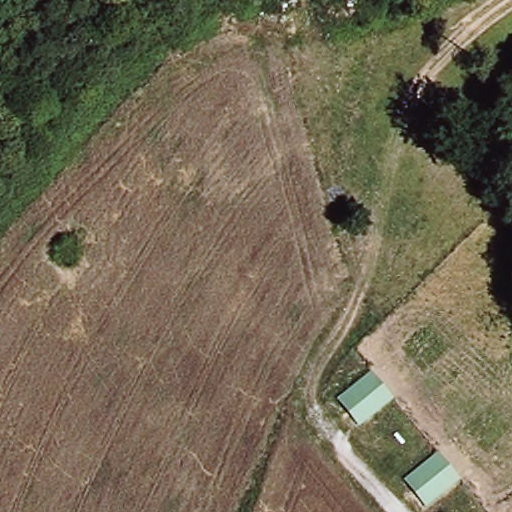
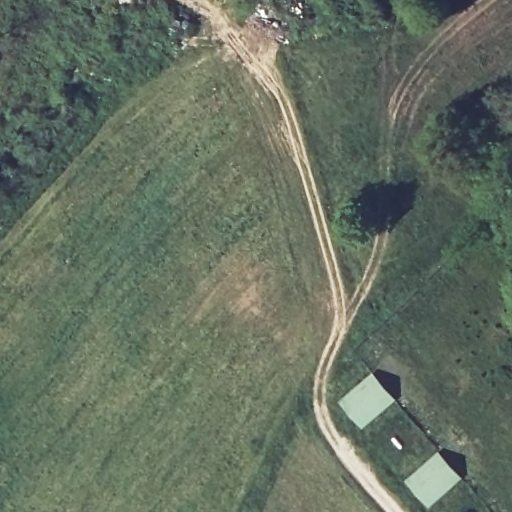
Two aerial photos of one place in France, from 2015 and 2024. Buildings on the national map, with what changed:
unchanged [(362,425),(341,396),(373,372),(395,398),(362,425)]
unchanged [(426,511),(405,485),(440,453),(465,480),(426,511)]

